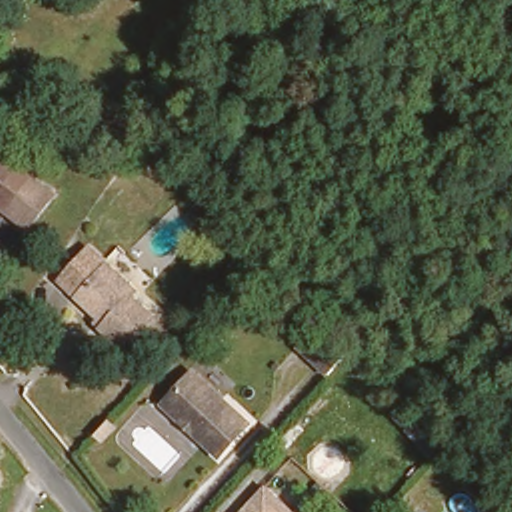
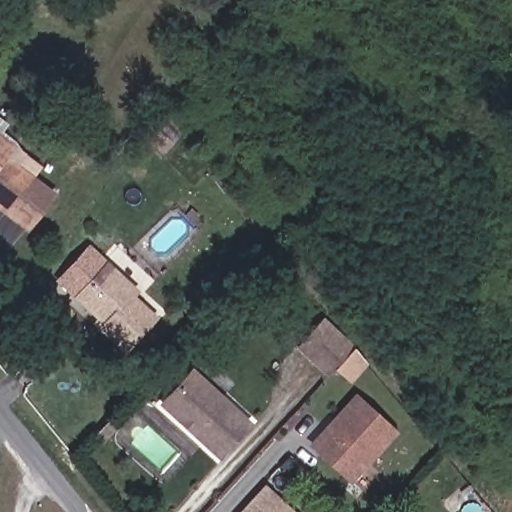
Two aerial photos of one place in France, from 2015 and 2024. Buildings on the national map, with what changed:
unchanged [(0,134),(10,142),(3,150),(29,169),(26,172),(2,206),(0,204),(0,134)]
unchanged [(159,168),(144,154),(155,141),(170,156),(159,168)]
unchanged [(26,172),(48,188),(23,221),(2,206),(26,172)]
unchanged [(141,292),(136,300),(157,318),(130,349),(109,329),(114,322),(84,296),(64,279),(90,251),(109,266),(110,265),(141,292)]
unchanged [(312,310),(356,346),(321,370),(293,341),(312,310)]
unchanged [(215,449),(200,437),(206,427),(167,392),(187,368),(242,417),(215,449)]
new [(308,445),(355,394),(399,431),(351,484),(308,445)]
unchanged [(295,512),(236,512),(263,483),(295,512)]

